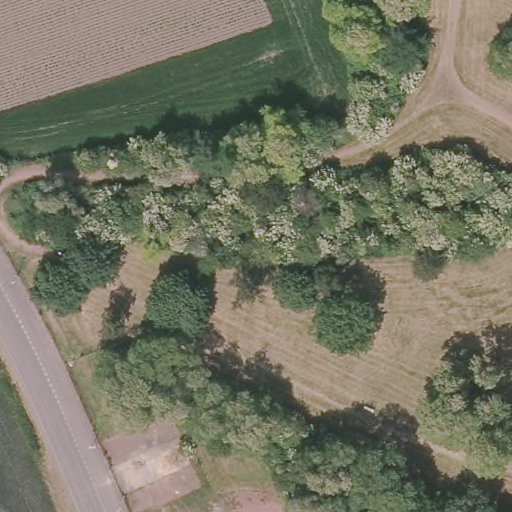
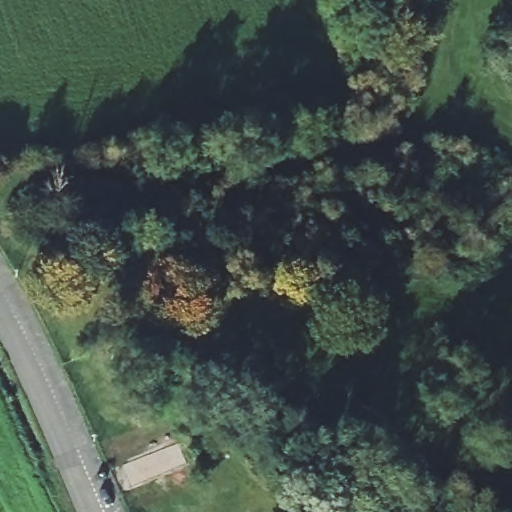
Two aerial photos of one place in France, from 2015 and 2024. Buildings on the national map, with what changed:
[]

